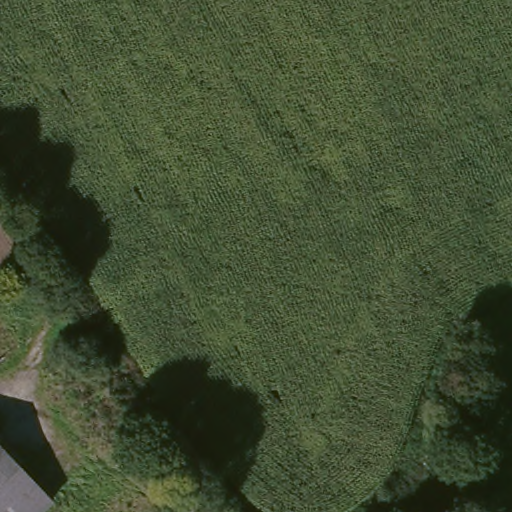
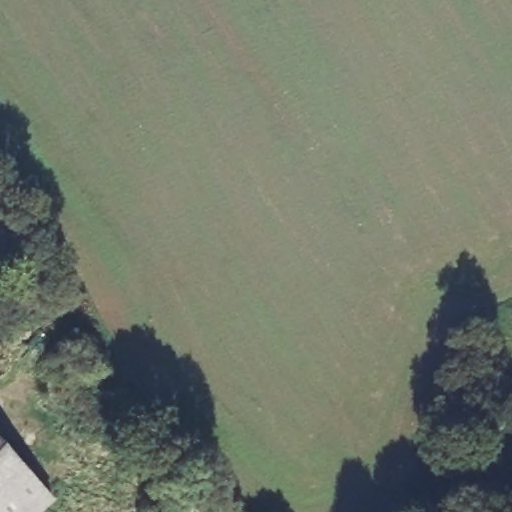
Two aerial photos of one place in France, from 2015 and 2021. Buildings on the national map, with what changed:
unchanged [(0,480),(0,448),(16,465),(0,480)]
unchanged [(34,512),(0,512),(0,480),(16,465),(49,498),(34,512)]

